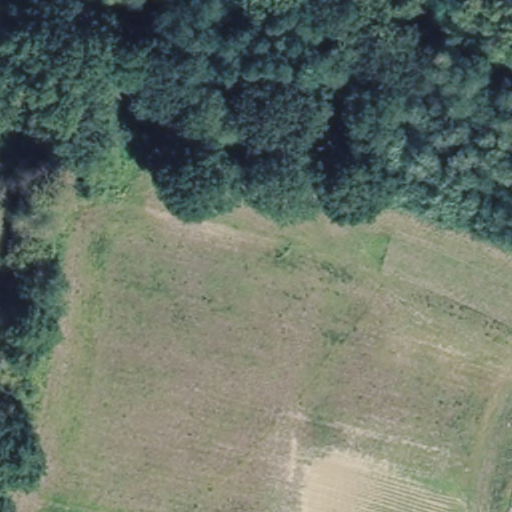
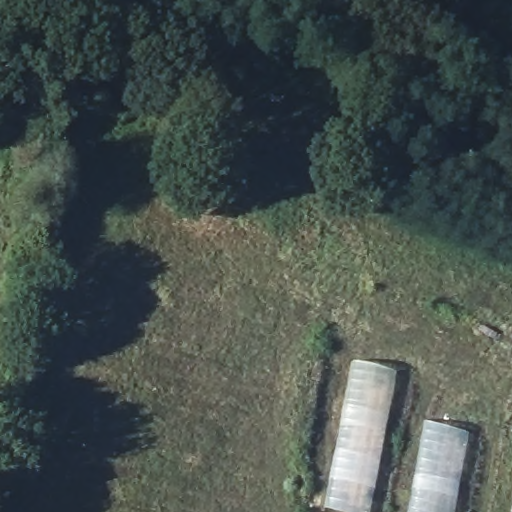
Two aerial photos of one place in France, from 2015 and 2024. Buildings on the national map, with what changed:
new [(397,373),(371,512),(335,512),(325,508),(353,363),(397,373)]
new [(468,435),(453,512),(412,512),(428,424),(468,435)]
new [(509,512),(512,499),(512,512),(509,512)]

